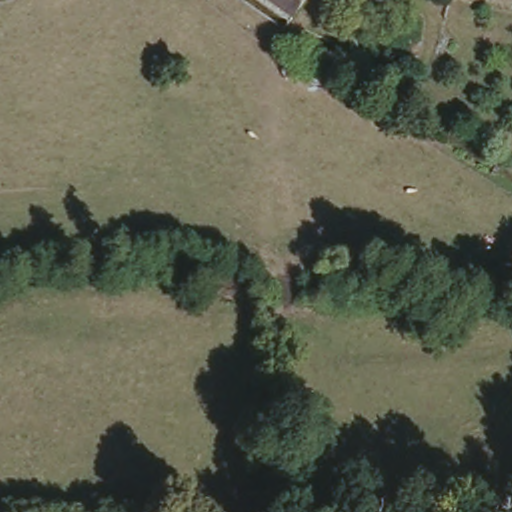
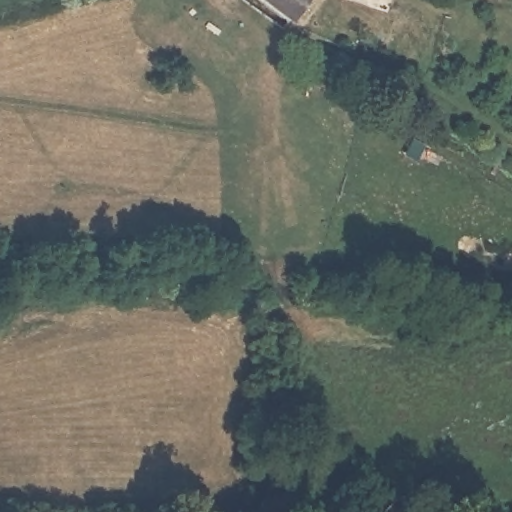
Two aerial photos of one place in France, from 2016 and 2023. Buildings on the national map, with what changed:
unchanged [(284,17),(260,0),(296,0),(284,17)]

